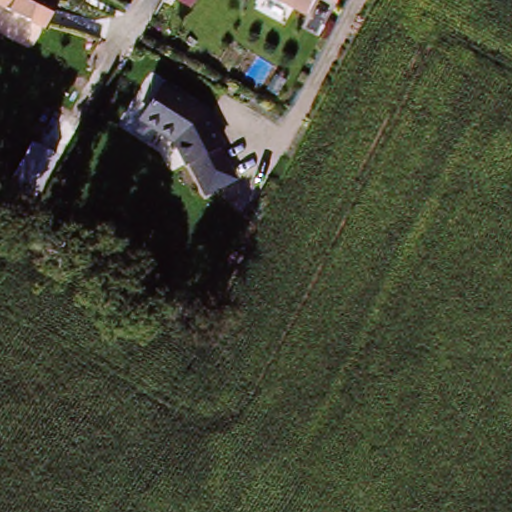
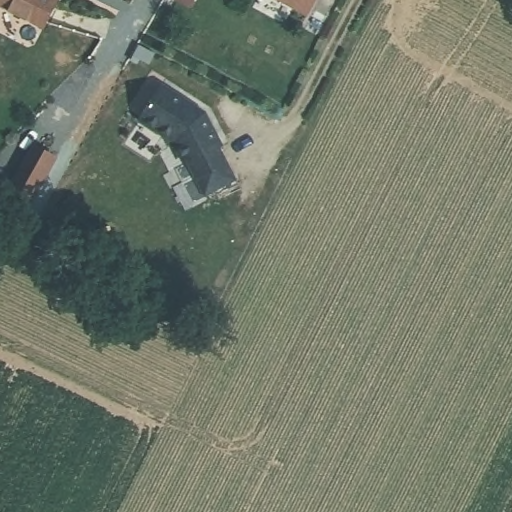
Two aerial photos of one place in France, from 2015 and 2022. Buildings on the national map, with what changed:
unchanged [(31,29),(0,9),(0,0),(50,0),(31,29)]
unchanged [(262,0),(306,0),(292,21),(262,0)]
unchanged [(230,190),(195,197),(187,161),(183,162),(180,141),(153,116),(183,84),(217,116),(225,152),(221,152),(230,190)]

